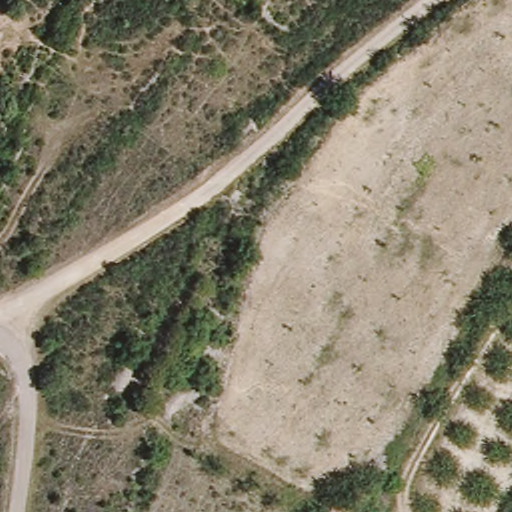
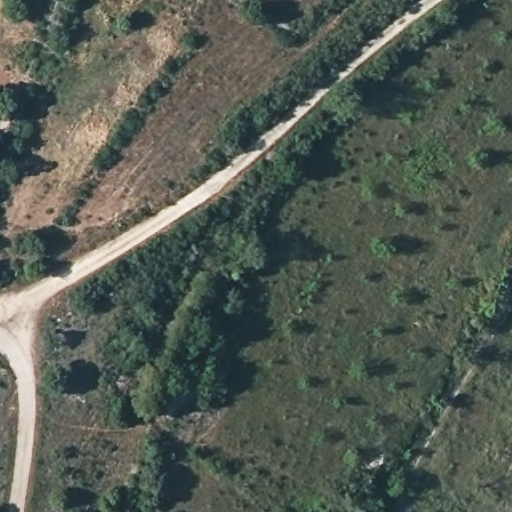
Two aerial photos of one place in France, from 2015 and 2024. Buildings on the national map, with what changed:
unchanged [(350,512),(327,512),(332,502),(350,512)]

